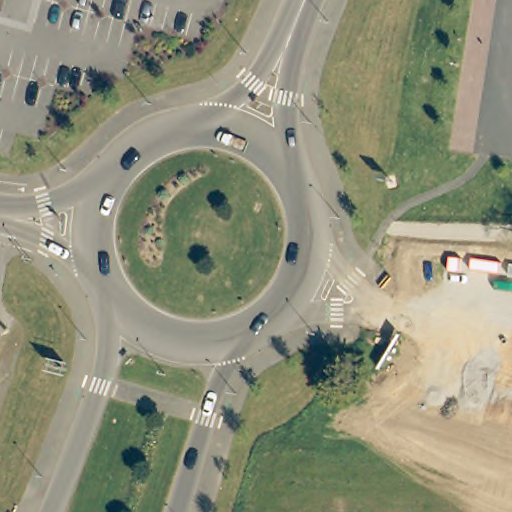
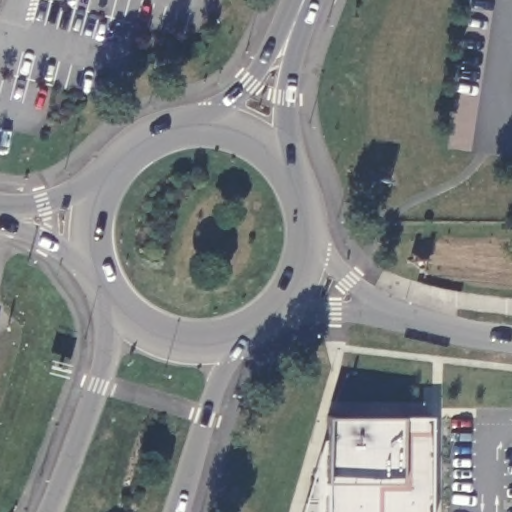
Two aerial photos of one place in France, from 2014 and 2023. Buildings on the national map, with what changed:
new [(431,512),(327,512),(327,416),(432,417),(431,512)]

